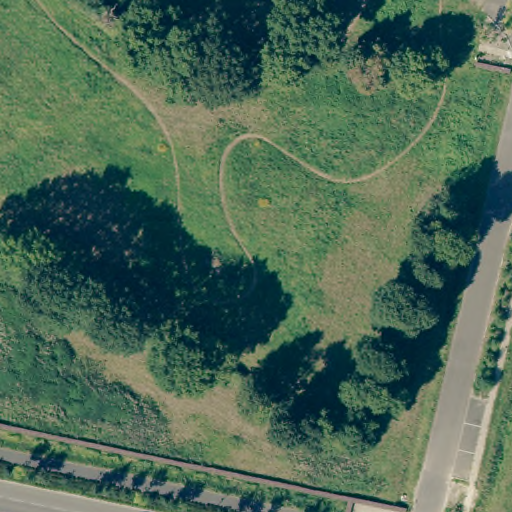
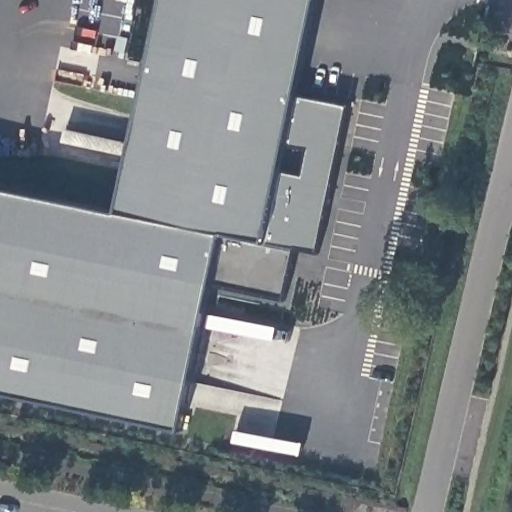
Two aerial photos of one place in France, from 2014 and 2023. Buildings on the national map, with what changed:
new [(295,95),(348,105),(319,252),(294,248),(284,300),(212,286),(183,430),(0,392),(0,187),(120,212),(164,0),(316,0),(295,95)]

